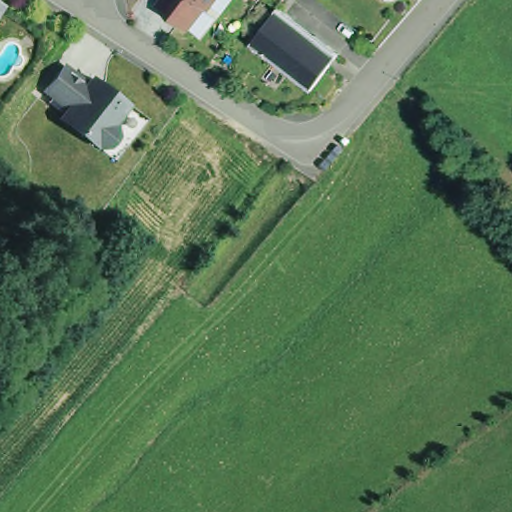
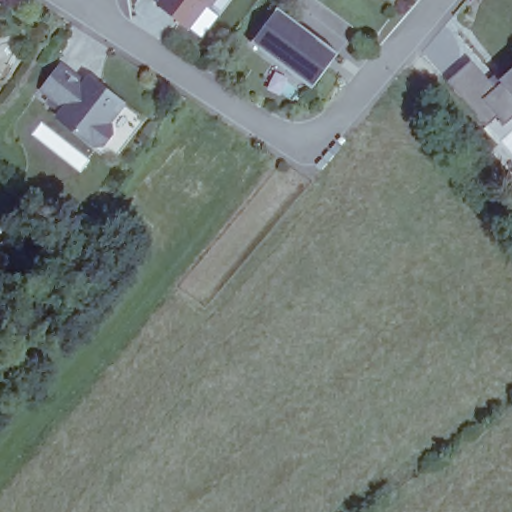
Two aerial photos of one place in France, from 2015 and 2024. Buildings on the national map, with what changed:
unchanged [(167,0),(237,0),(208,38),(193,27),(186,22),(163,4),(167,0)]
unchanged [(314,90),(254,45),(279,9),(341,57),(314,90)]
new [(499,88),(512,76),(512,135),(504,142),(449,82),(474,60),(499,88)]
unchanged [(86,86),(92,80),(125,106),(109,125),(113,129),(113,137),(106,147),(98,147),(95,144),(93,146),(59,120),(68,110),(44,91),(63,68),(86,86)]

